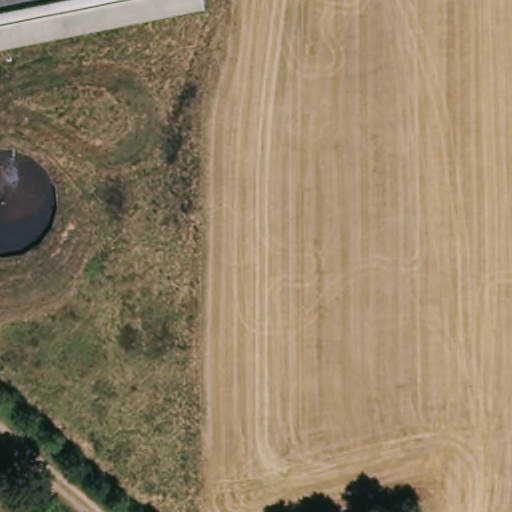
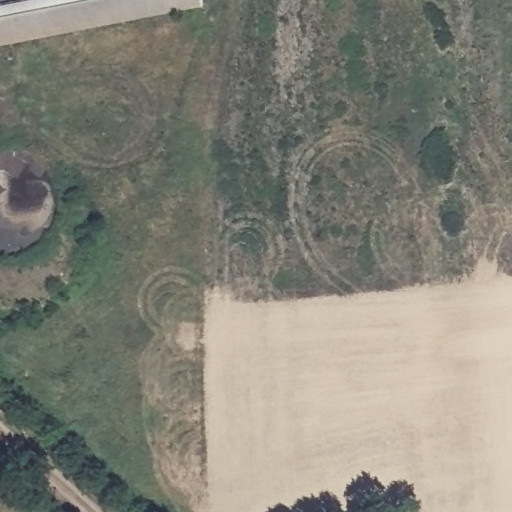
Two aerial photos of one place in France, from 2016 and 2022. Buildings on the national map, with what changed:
unchanged [(206,9),(83,28),(0,42),(0,0),(204,0),(206,9)]

